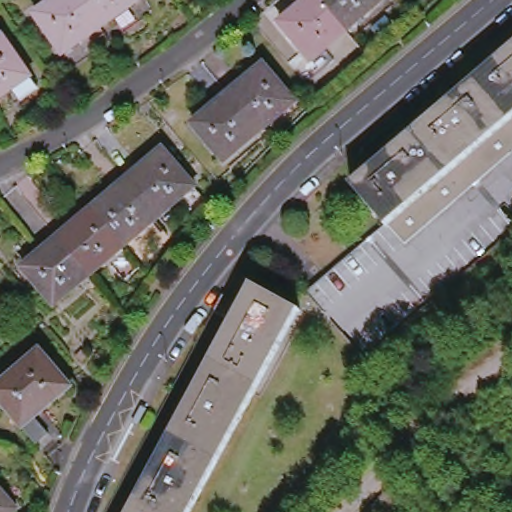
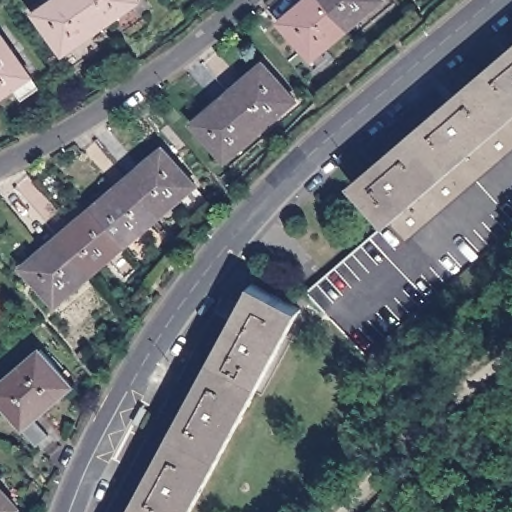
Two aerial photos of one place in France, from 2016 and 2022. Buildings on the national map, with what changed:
unchanged [(63,53),(35,14),(55,0),(83,0),(101,27),(63,53)]
unchanged [(139,1),(101,27),(83,0),(138,0),(139,1)]
unchanged [(313,59),(280,21),(306,0),(322,0),(347,30),(313,59)]
unchanged [(347,30),(322,0),(383,0),(347,30)]
unchanged [(2,36),(30,77),(14,88),(0,98),(0,38),(2,36)]
unchanged [(453,97),(512,48),(512,118),(386,226),(352,185),(374,167),(453,97)]
unchanged [(295,100),(261,130),(230,93),(265,63),(295,100)]
unchanged [(261,130),(226,160),(195,123),(230,93),(261,130)]
unchanged [(512,237),(366,362),(308,292),(386,226),(512,118),(512,237)]
unchanged [(160,216),(129,179),(164,149),(195,186),(160,216)]
unchanged [(129,179),(160,216),(126,245),(95,208),(129,179)]
unchanged [(60,238),(95,208),(126,245),(91,275),(60,238)]
unchanged [(57,304),(24,268),(60,238),(91,275),(57,304)]
unchanged [(253,284),(301,310),(255,394),(192,512),(130,512),(241,306),(253,284)]
unchanged [(0,316),(0,307),(5,312),(0,316)]
unchanged [(39,417),(53,434),(38,445),(7,408),(1,412),(0,411),(0,385),(41,349),(75,388),(39,417)]
unchanged [(35,481),(45,491),(37,504),(26,499),(35,481)]
unchanged [(18,509),(15,512),(0,512),(0,488),(18,509)]

